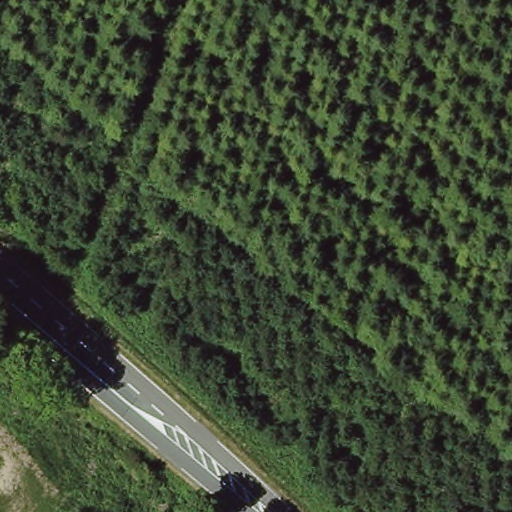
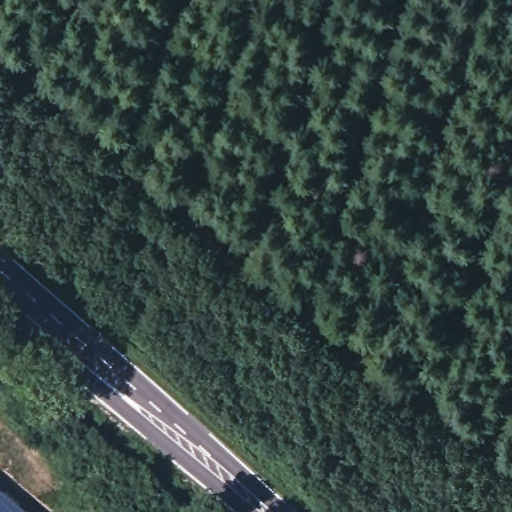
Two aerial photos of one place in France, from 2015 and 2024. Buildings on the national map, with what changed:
new [(0,489),(27,512),(0,512),(0,489)]

